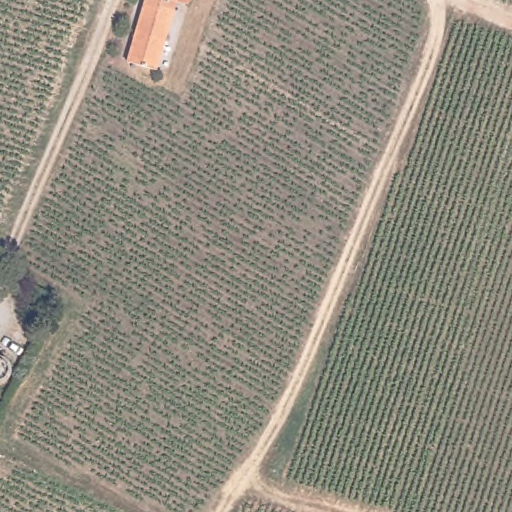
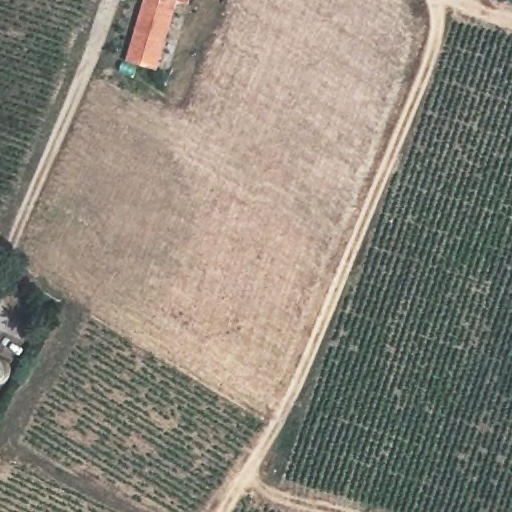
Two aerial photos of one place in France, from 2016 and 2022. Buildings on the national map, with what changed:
unchanged [(143,0),(189,0),(188,5),(177,2),(157,71),(125,62),(143,0)]
unchanged [(5,359),(8,361),(10,364),(11,367),(12,370),(12,373),(11,377),(10,380),(8,382),(5,384),(3,386),(0,386),(0,357),(1,358),(5,359)]

